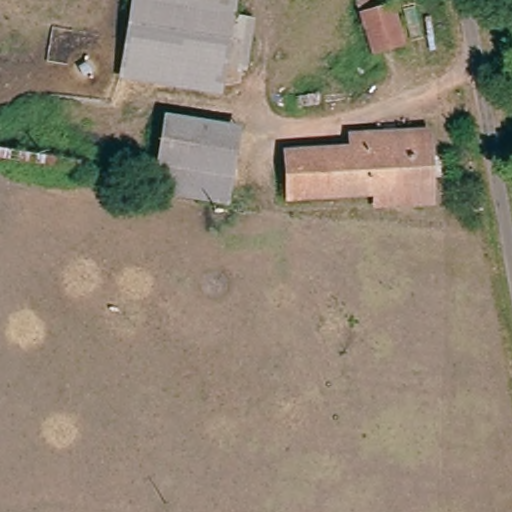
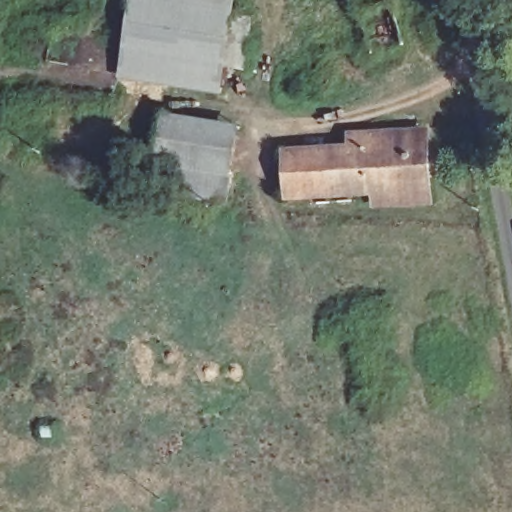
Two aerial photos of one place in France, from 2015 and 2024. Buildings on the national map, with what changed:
unchanged [(230,16),(250,20),(242,69),(222,65),(123,49),(131,0),(230,16)]
unchanged [(131,0),(232,0),(230,16),(131,0)]
unchanged [(370,59),(357,18),(354,6),(376,0),(387,0),(390,9),(402,50),(370,59)]
unchanged [(451,38),(455,66),(436,67),(434,40),(451,38)]
unchanged [(222,65),(217,90),(119,74),(123,49),(222,65)]
unchanged [(167,114),(242,127),(234,176),(159,163),(167,114)]
unchanged [(377,194),(292,200),(289,153),(354,149),(353,137),(430,133),(434,202),(395,204),(377,205),(377,194)]
unchanged [(234,176),(229,204),(155,191),(159,163),(234,176)]

